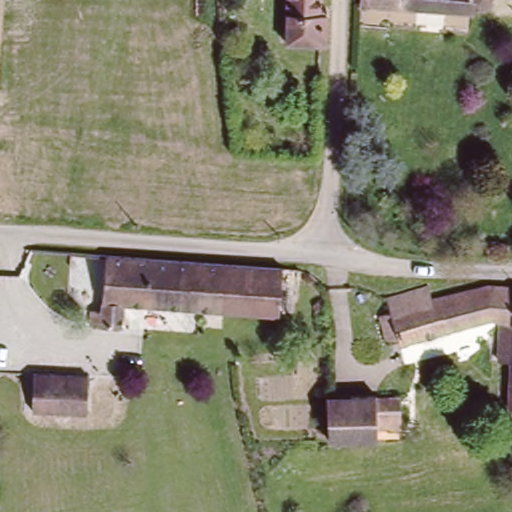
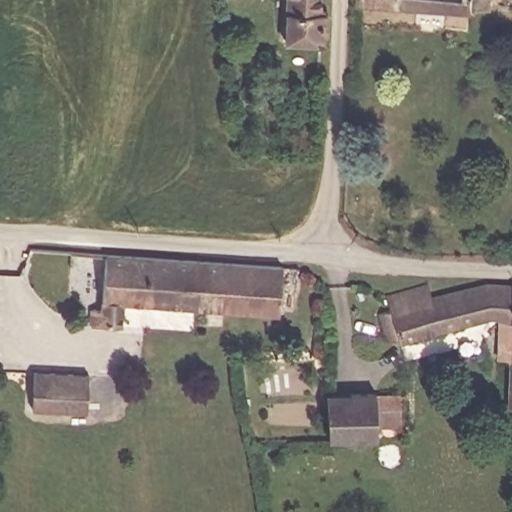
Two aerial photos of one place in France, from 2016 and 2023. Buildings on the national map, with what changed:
unchanged [(330,9),(329,43),(290,42),(291,0),(325,0),(325,9),(330,9)]
unchanged [(369,2),(369,0),(495,0),(495,9),(477,8),(477,13),(369,2)]
unchanged [(302,296),(292,295),(290,313),(129,301),(127,322),(94,319),(95,305),(104,305),(108,250),(305,266),(302,296)]
unchanged [(436,296),(491,282),(512,285),(512,309),(508,358),(497,356),(492,356),(495,315),(401,342),(399,334),(387,337),(380,312),(392,308),(389,295),(432,283),(436,296)]
unchanged [(508,358),(512,309),(512,401),(505,399),(508,358)]
unchanged [(87,376),(85,412),(33,410),(34,375),(87,376)]
unchanged [(330,393),(382,392),(382,402),(405,401),(405,421),(382,422),(382,432),(332,433),(330,393)]

